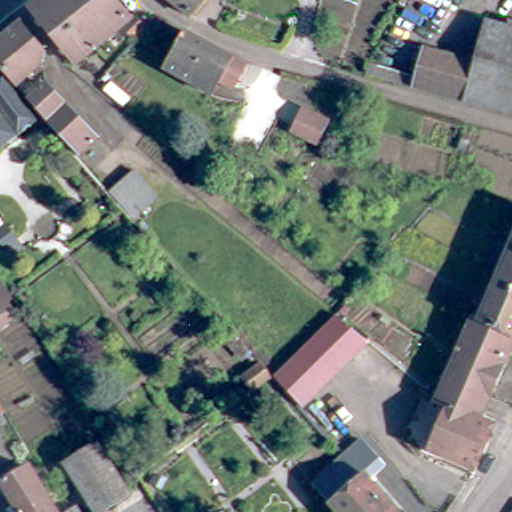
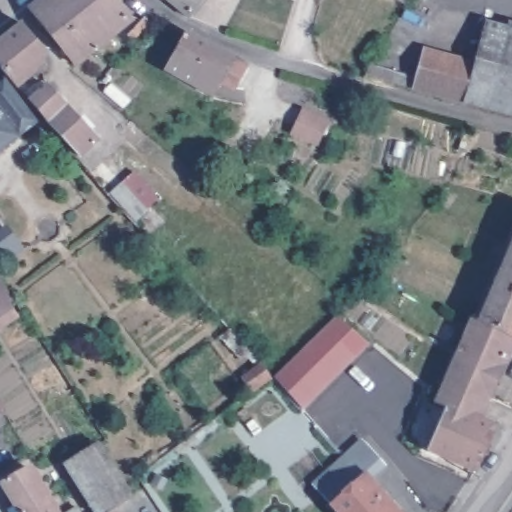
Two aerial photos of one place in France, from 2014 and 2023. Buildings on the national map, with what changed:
unchanged [(135,16),(117,32),(120,35),(82,65),(35,12),(50,0),(122,0),(135,16)]
unchanged [(171,0),(207,0),(192,18),(171,0)]
unchanged [(417,1),(413,0),(417,0),(417,1)]
unchanged [(485,57),(495,24),(512,27),(512,112),(473,101),(471,100),(483,63),(485,57)]
unchanged [(0,61),(0,48),(27,25),(52,55),(47,69),(23,90),(0,61)]
unchanged [(190,34),(235,59),(252,69),(242,85),(223,77),(222,81),(214,95),(172,72),(178,59),(190,34)]
unchanged [(485,57),(483,63),(471,100),(417,89),(428,42),(485,57)]
unchanged [(0,157),(0,89),(10,81),(28,105),(43,126),(0,157)]
unchanged [(77,164),(35,104),(53,89),(102,140),(86,155),(77,164)]
unchanged [(302,133),(309,116),(329,123),(323,141),(302,133)]
unchanged [(134,180),(161,206),(151,216),(137,230),(127,220),(110,204),(123,190),(134,180)]
unchanged [(512,335),(477,320),(512,240),(512,335)]
unchanged [(2,330),(0,332),(0,312),(0,274),(5,270),(22,296),(32,311),(2,330)]
unchanged [(372,337),(307,404),(280,372),(340,310),(372,337)]
unchanged [(443,400),(455,375),(477,320),(512,335),(512,355),(510,355),(482,421),(453,410),(442,405),(443,400)]
unchanged [(262,354),(280,372),(261,386),(245,366),(262,354)]
unchanged [(15,423),(10,427),(0,434),(0,399),(15,423)]
unchanged [(484,422),(500,430),(480,475),(435,455),(453,410),(482,421),(484,422)]
unchanged [(368,438),(390,465),(373,480),(401,512),(343,512),(335,502),(332,500),(317,481),(350,452),(368,438)]
unchanged [(103,512),(72,463),(107,442),(138,494),(107,512),(103,512)]
unchanged [(28,506),(13,483),(40,466),(67,512),(22,512),(21,511),(28,506)]

